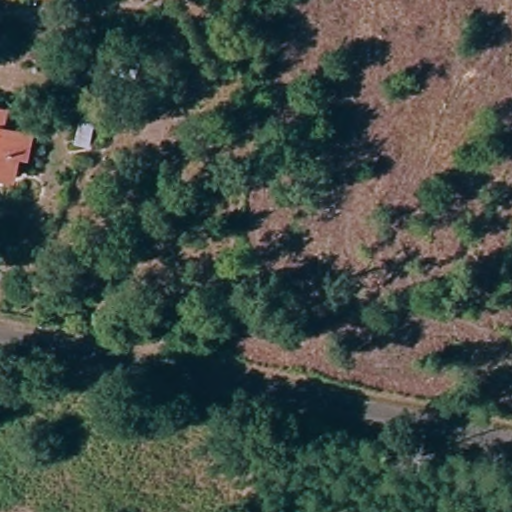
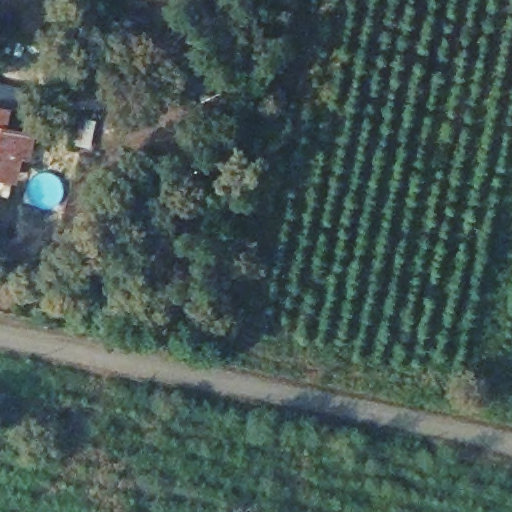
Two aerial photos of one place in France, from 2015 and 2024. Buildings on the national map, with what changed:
unchanged [(4,127),(33,130),(27,154),(18,152),(14,173),(0,171),(0,108),(7,110),(4,127)]

